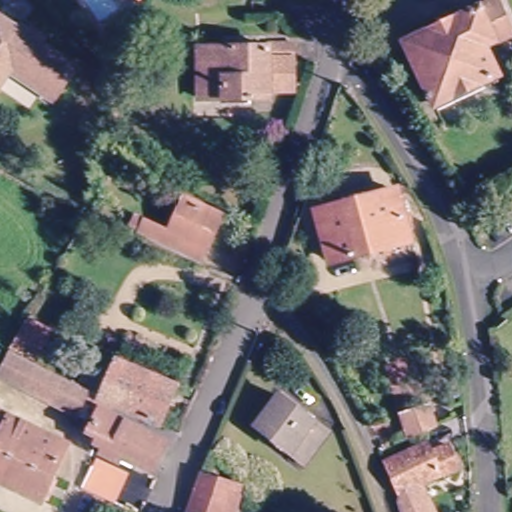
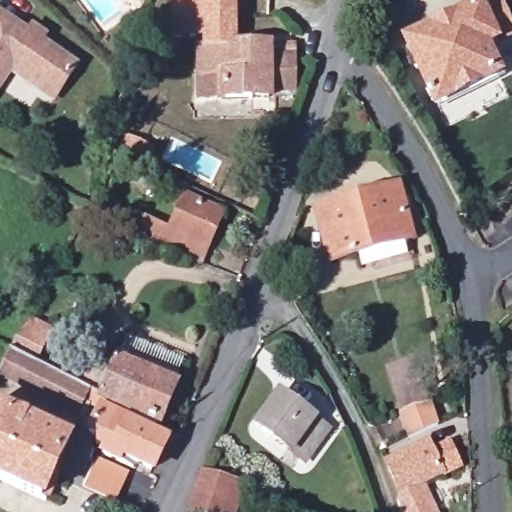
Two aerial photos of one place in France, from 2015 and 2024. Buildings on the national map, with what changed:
unchanged [(124,0),(120,2),(118,0),(124,0)]
unchanged [(144,0),(141,7),(133,0),(144,0)]
new [(169,45),(169,0),(237,0),(238,46),(184,45),(169,45)]
unchanged [(505,44),(499,49),(509,76),(491,82),(497,91),(441,119),(398,36),(480,2),(485,0),(503,0),(512,19),(512,36),(500,37),(505,44)]
unchanged [(18,87),(0,113),(0,37),(17,11),(97,64),(67,109),(62,116),(18,87)]
unchanged [(270,89),(256,89),(256,97),(183,96),(184,45),(257,46),(257,43),(280,44),(280,60),(280,89),(270,89)]
unchanged [(332,261),(318,210),(399,189),(413,241),(332,261)]
unchanged [(186,196),(222,214),(200,262),(135,232),(137,230),(129,225),(136,212),(143,215),(170,229),(186,196)]
unchanged [(29,317),(54,331),(38,363),(10,350),(29,317)]
unchanged [(152,470),(129,458),(125,465),(101,452),(104,445),(97,442),(100,435),(90,430),(101,408),(87,401),(78,418),(0,378),(0,370),(10,350),(38,363),(78,385),(92,355),(115,366),(119,358),(176,384),(161,424),(114,401),(108,412),(167,440),(152,470)]
unchanged [(329,433),(306,464),(257,425),(281,395),(329,433)]
unchanged [(399,411),(431,401),(439,425),(408,439),(399,411)]
unchanged [(67,444),(42,498),(0,479),(0,412),(67,444)]
unchanged [(402,496),(386,461),(430,440),(431,441),(433,447),(450,440),(462,466),(424,484),(437,512),(404,512),(401,497),(402,496)]
unchanged [(203,473),(232,484),(241,487),(233,512),(190,512),(203,473)]

